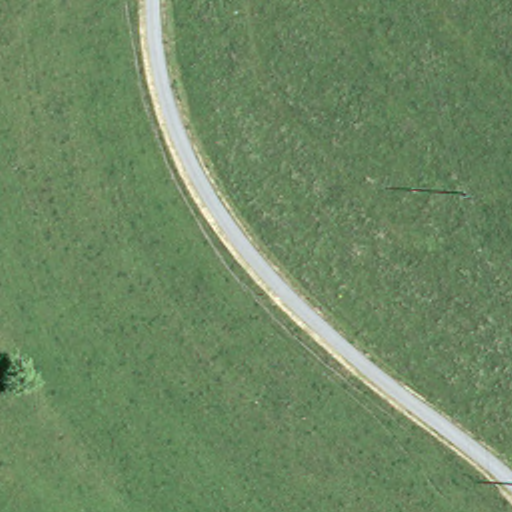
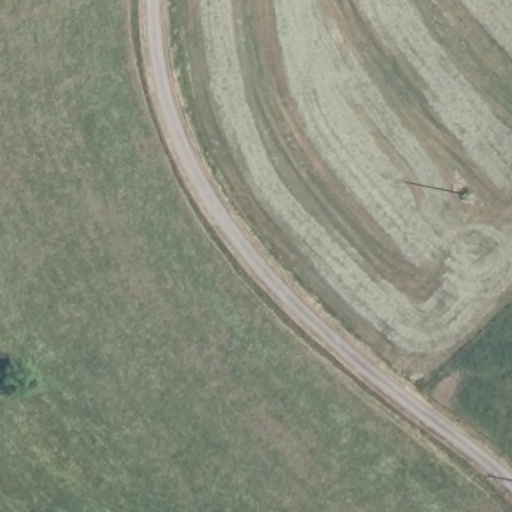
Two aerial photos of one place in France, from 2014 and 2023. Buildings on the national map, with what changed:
[]

